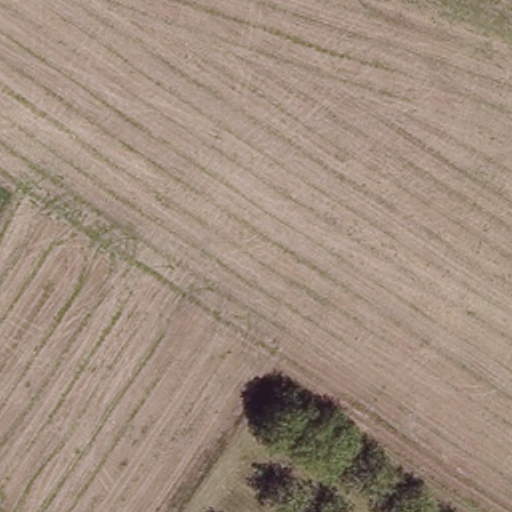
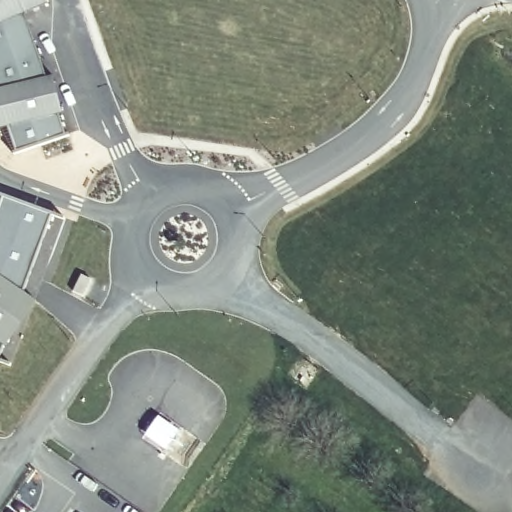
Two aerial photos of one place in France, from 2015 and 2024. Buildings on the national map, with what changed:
new [(70,110),(63,115),(71,136),(23,155),(12,128),(2,135),(0,130),(0,0),(49,0),(51,4),(29,13),(50,74),(57,71),(70,110)]
new [(14,347),(11,346),(5,363),(0,361),(0,195),(1,193),(60,215),(31,294),(44,303),(14,347)]

